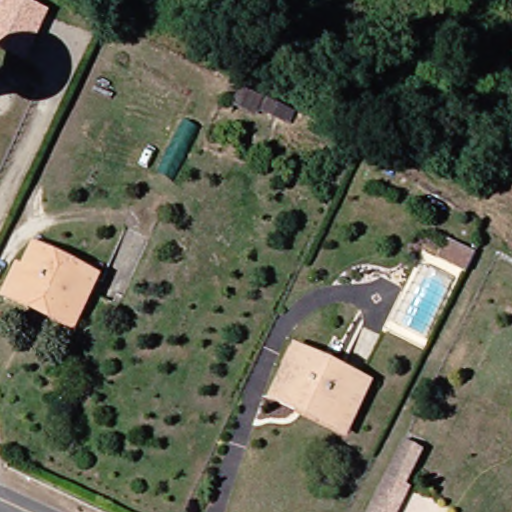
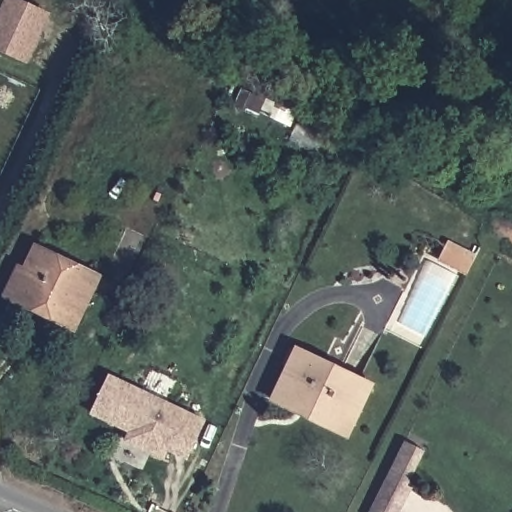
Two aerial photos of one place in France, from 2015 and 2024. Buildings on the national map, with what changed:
unchanged [(25,66),(0,54),(0,24),(10,2),(48,20),(25,66)]
unchanged [(24,287),(32,266),(41,244),(105,274),(87,317),(24,287)]
unchanged [(426,262),(455,274),(428,332),(400,319),(426,262)]
unchanged [(81,326),(11,292),(24,263),(32,266),(24,287),(87,317),(81,326)]
unchanged [(378,380),(355,432),(280,392),(307,342),(378,380)]
new [(122,442),(126,432),(88,414),(108,373),(207,419),(187,460),(168,451),(164,460),(122,442)]
unchanged [(369,510),(408,431),(428,442),(411,477),(420,482),(405,512),(373,512),(369,510)]

